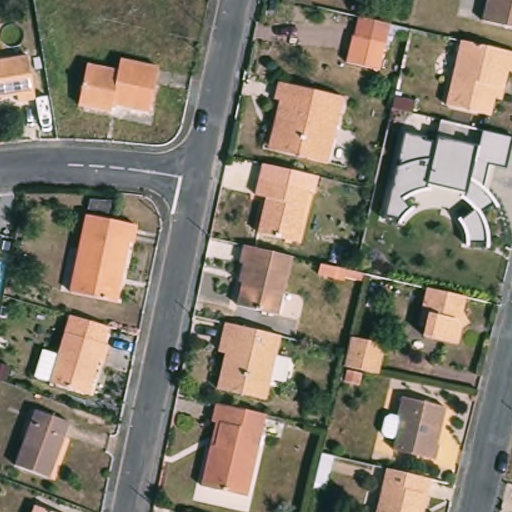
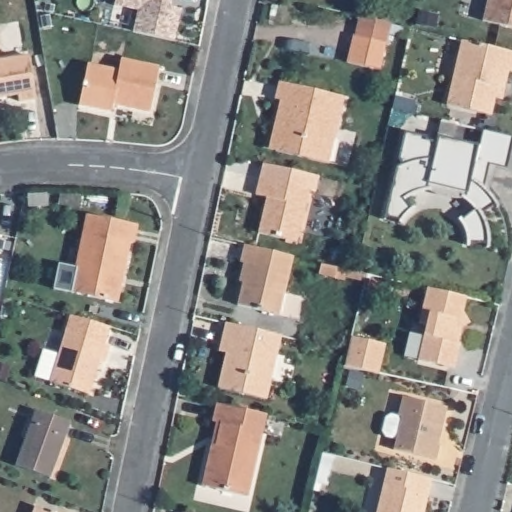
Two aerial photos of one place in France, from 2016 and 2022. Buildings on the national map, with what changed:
new [(116,0),(167,0),(165,7),(181,11),(174,42),(133,33),(138,12),(114,6),(116,0)]
unchanged [(484,19),(489,0),(512,0),(512,26),(484,19)]
unchanged [(384,72),(349,65),(355,37),(358,38),(362,17),(395,26),(384,72)]
unchanged [(493,101),(489,118),(445,107),(461,43),(512,56),(512,76),(508,75),(505,90),(501,103),(493,101)]
unchanged [(36,102),(20,105),(18,96),(0,99),(0,60),(29,55),(36,102)]
unchanged [(150,115),(113,107),(112,115),(79,108),(88,64),(120,71),(123,60),(159,67),(150,115)]
unchanged [(277,122),(282,102),(278,102),(282,84),(345,100),(330,166),(278,154),(270,151),(277,122)]
unchanged [(463,225),(460,219),(473,209),(462,199),(450,199),(436,196),(426,190),(413,193),(402,196),(410,208),(397,219),(385,215),(405,132),(425,137),(424,141),(438,144),(440,137),(478,146),(482,130),(512,137),(512,141),(505,167),(490,164),(485,190),(496,205),(481,215),(485,227),(487,243),(468,243),(463,225)]
unchanged [(262,232),(270,197),(258,195),(262,177),(312,190),(300,241),(262,232)]
unchanged [(137,223),(133,241),(130,240),(118,300),(72,290),(88,212),(137,223)]
unchanged [(281,314),(239,305),(248,264),(242,263),(246,245),(294,256),(281,314)]
unchanged [(462,328),(459,343),(425,336),(428,324),(419,322),(428,287),(466,297),(462,317),(468,323),(462,328)]
unchanged [(103,347),(109,348),(105,365),(100,363),(90,397),(51,385),(62,350),(71,317),(104,327),(108,328),(103,347)]
unchanged [(221,388),(229,352),(221,352),(224,338),(227,322),(283,335),(269,399),(221,388)]
unchanged [(392,346),(385,375),(351,367),(354,354),(358,338),(392,346)]
unchanged [(352,382),(355,372),(369,375),(367,386),(352,382)]
unchanged [(395,452),(397,441),(385,437),(383,432),(386,419),(392,416),(399,418),(404,398),(449,409),(444,430),(441,428),(436,447),(441,447),(437,462),(395,452)]
unchanged [(73,421),(52,477),(16,464),(37,407),(73,421)]
unchanged [(203,490),(212,451),(217,427),(215,427),(218,407),(266,418),(248,500),(203,490)]
unchanged [(379,512),(389,472),(432,482),(430,498),(426,512),(379,512)]
unchanged [(45,512),(37,512),(38,509),(45,512)]

